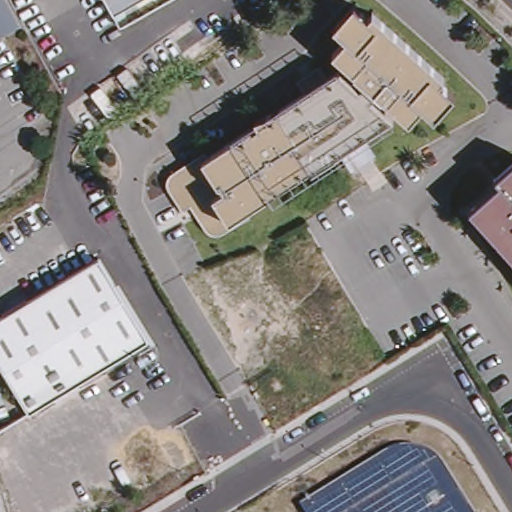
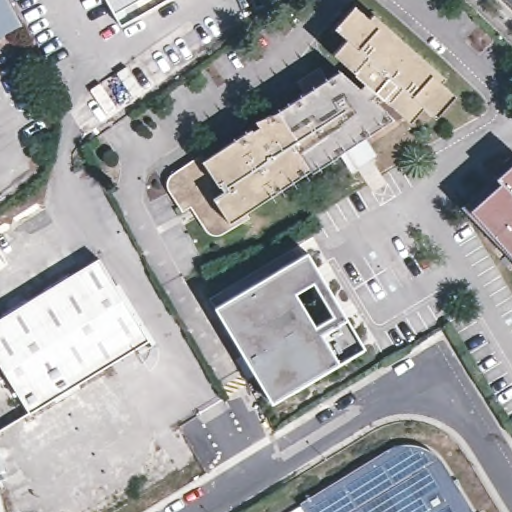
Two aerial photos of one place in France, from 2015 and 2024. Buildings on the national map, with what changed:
unchanged [(0,35),(0,0),(7,0),(21,24),(0,35)]
unchanged [(105,0),(122,0),(109,7),(105,0)]
unchanged [(147,0),(136,7),(129,11),(123,0),(147,0)]
unchanged [(367,135),(375,157),(352,171),(344,150),(245,212),(213,238),(202,234),(189,212),(179,216),(164,187),(167,180),(171,174),(201,161),(338,70),(326,57),(340,40),(330,32),(352,4),(366,18),(372,15),(446,77),(442,86),(453,95),(430,122),(420,116),(408,126),(397,114),(367,135)]
unchanged [(493,177),(498,180),(512,167),(512,259),(469,212),(461,205),(493,177)]
new [(217,307),(308,256),(363,347),(270,401),(217,307)]
unchanged [(145,338),(29,411),(0,361),(0,320),(98,258),(145,338)]
unchanged [(392,444),(397,443),(410,442),(418,442),(425,445),(434,451),(472,512),(306,512),(301,502),(392,444)]

